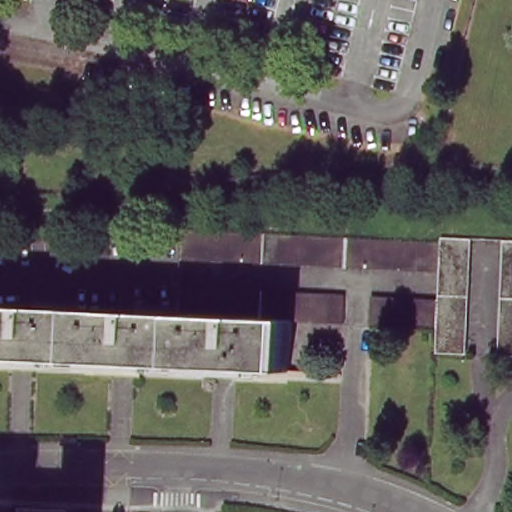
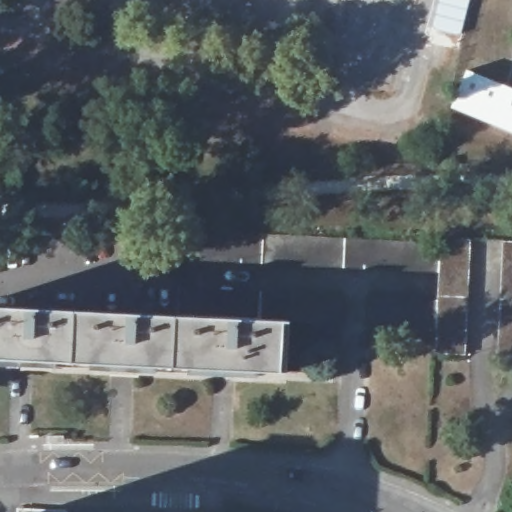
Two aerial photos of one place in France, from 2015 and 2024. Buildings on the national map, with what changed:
new [(437,0),(470,0),(461,35),(430,27),(437,0)]
new [(466,68),(512,87),(512,134),(449,107),(466,68)]
unchanged [(240,231),(239,259),(175,255),(175,228),(240,231)]
unchanged [(441,241),(440,268),(239,259),(240,231),(441,241)]
unchanged [(442,239),(471,239),(467,352),(436,350),(437,327),(439,298),(440,268),(441,241),(442,239)]
unchanged [(501,353),(506,241),(512,242),(512,354),(501,353)]
unchanged [(0,356),(0,307),(176,315),(178,285),(345,292),(344,323),(291,320),(289,369),(0,356)]
unchanged [(437,327),(365,324),(366,294),(439,298),(437,327)]
unchanged [(68,511),(68,512),(20,512),(20,509),(68,511)]

